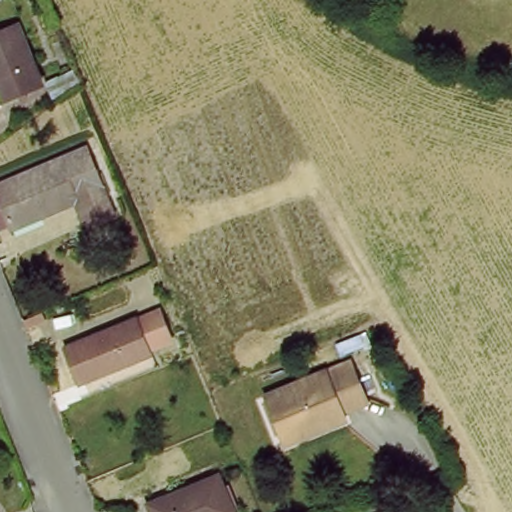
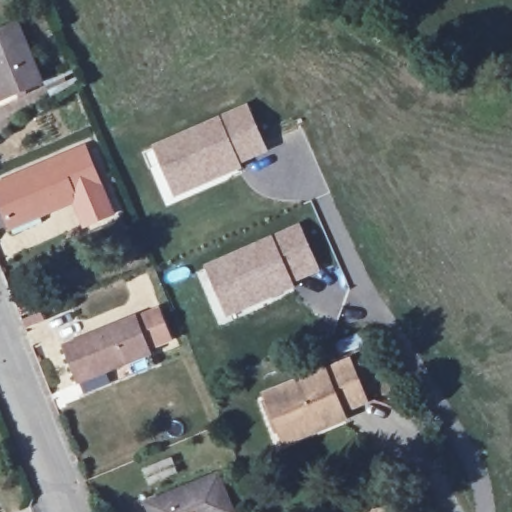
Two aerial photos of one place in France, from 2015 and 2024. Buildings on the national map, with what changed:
unchanged [(45,83),(6,98),(0,84),(0,18),(9,13),(13,24),(19,24),(45,83)]
new [(248,105),(269,154),(244,166),(245,169),(176,199),(153,145),(248,105)]
unchanged [(0,200),(0,195),(84,159),(100,194),(13,232),(0,200)]
new [(302,224),(322,274),(294,285),(296,290),(227,319),(204,268),(302,224)]
unchanged [(76,383),(61,344),(136,314),(151,353),(76,383)]
unchanged [(261,399),(350,361),(364,397),(343,413),(347,425),(279,452),(261,399)]
unchanged [(147,503),(217,474),(232,512),(151,512),(147,503)]

